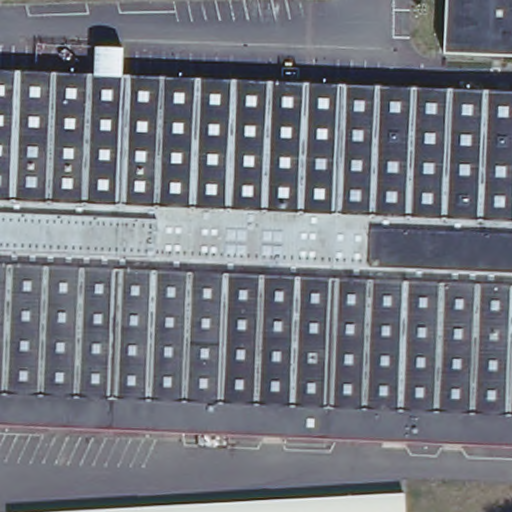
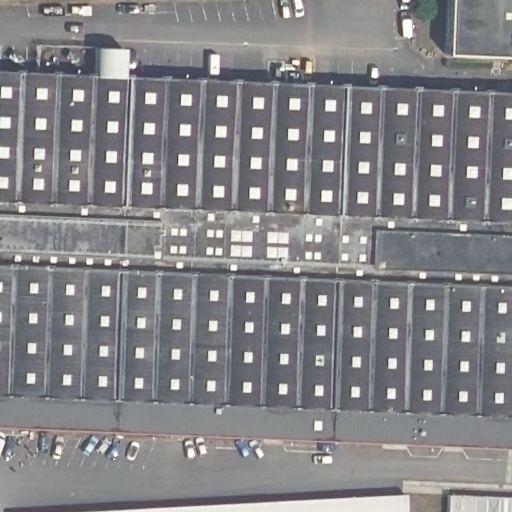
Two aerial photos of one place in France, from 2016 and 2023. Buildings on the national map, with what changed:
unchanged [(449,52),(451,0),(512,0),(512,55),(449,52)]
unchanged [(0,426),(0,70),(512,92),(512,448),(0,426)]
unchanged [(404,512),(57,512),(403,490),(404,512)]
new [(448,512),(449,493),(512,496),(512,512),(448,512)]

